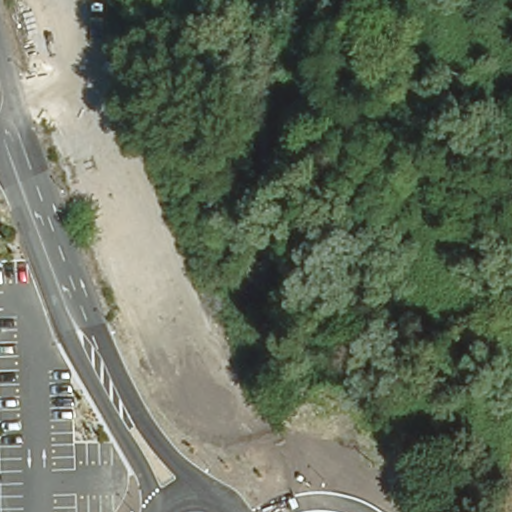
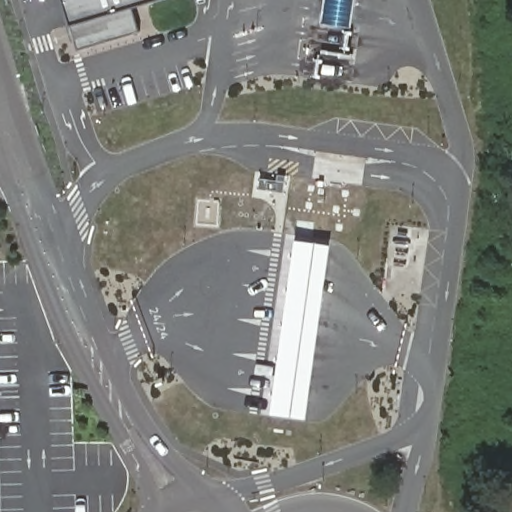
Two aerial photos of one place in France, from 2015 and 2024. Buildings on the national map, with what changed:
new [(141,30),(79,49),(76,39),(72,40),(61,0),(151,0),(134,5),(141,30)]
new [(272,412),(297,238),(316,241),(332,243),(307,417),(292,415),(272,412)]

